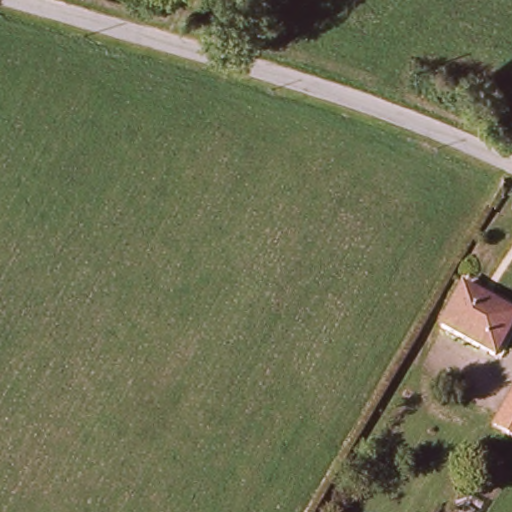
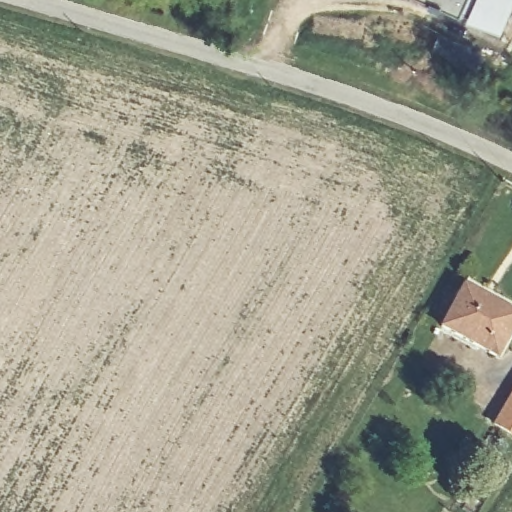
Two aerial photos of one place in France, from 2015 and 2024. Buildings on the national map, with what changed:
new [(472,18),(474,15),(465,11),(463,14),(433,0),(512,0),(512,2),(500,31),(472,18)]
unchanged [(463,289),(512,314),(512,327),(498,355),(444,328),(463,289)]
unchanged [(512,385),(512,436),(491,423),(512,385)]

